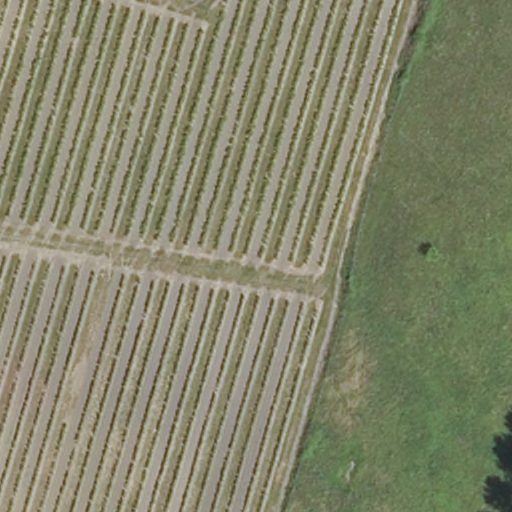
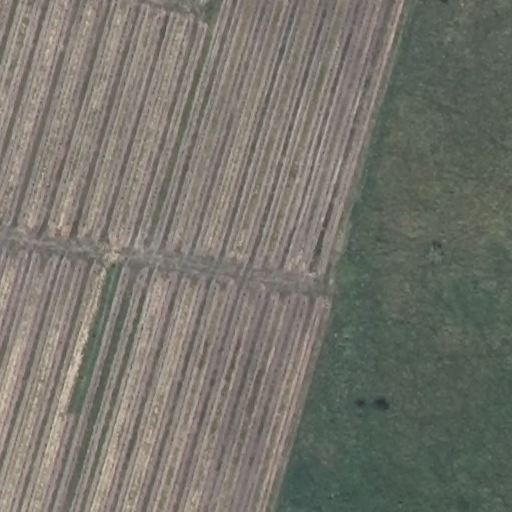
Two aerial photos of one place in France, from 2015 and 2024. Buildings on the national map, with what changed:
[]

